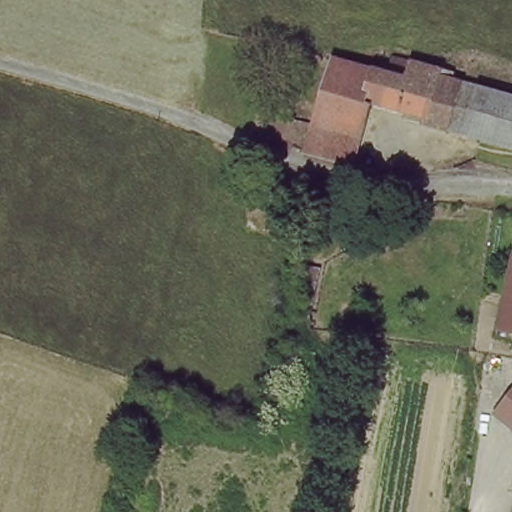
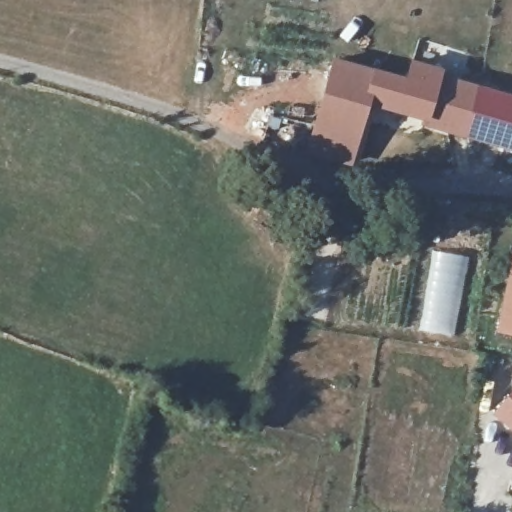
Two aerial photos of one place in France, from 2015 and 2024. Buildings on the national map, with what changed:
unchanged [(329,56),(403,76),(405,59),(445,67),(443,73),(512,92),(512,147),(368,111),(355,161),(302,150),(329,56)]
new [(432,251),(469,257),(454,336),(418,329),(432,251)]
unchanged [(500,330),(512,284),(512,333),(500,330)]
unchanged [(502,412),(493,405),(505,392),(512,384),(512,421),(502,412)]

